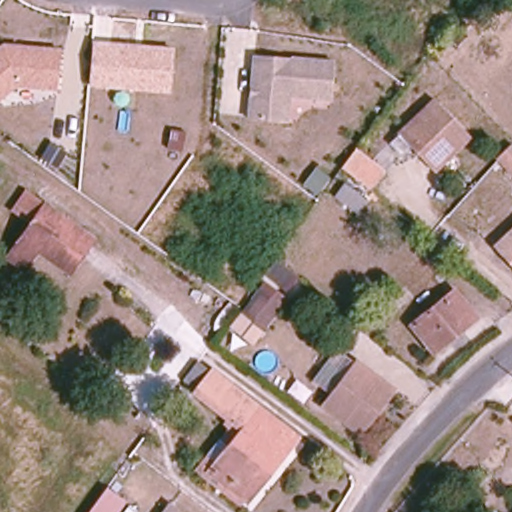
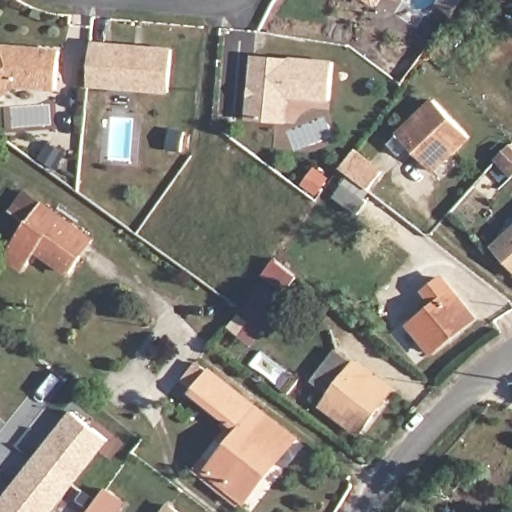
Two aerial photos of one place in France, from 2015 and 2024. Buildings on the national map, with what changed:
new [(375,7),(365,0),(380,0),(375,7)]
new [(453,16),(437,3),(439,0),(465,0),(453,16)]
unchanged [(93,42),(174,47),(170,93),(89,87),(93,42)]
unchanged [(57,91),(15,87),(0,101),(0,45),(2,43),(61,49),(57,91)]
unchanged [(277,121),(250,124),(243,60),(322,50),(327,88),(283,93),(286,120),(277,121)]
unchanged [(471,134),(432,167),(410,141),(401,149),(390,137),(399,129),(438,96),(471,134)]
unchanged [(370,189),(341,167),(356,147),(385,170),(370,189)]
unchanged [(512,156),(512,180),(500,167),(512,156)]
unchanged [(339,201),(351,187),(374,205),(364,219),(339,201)]
unchanged [(92,244),(69,277),(36,253),(24,268),(4,255),(39,207),(92,244)]
unchanged [(512,233),(512,258),(499,245),(512,233)]
unchanged [(289,296),(264,277),(278,257),(302,275),(289,296)]
unchanged [(280,297),(249,344),(226,327),(260,280),(280,297)]
unchanged [(434,351),(411,322),(452,292),(476,321),(434,351)]
unchanged [(359,437),(321,402),(359,361),(396,395),(359,437)]
unchanged [(289,432),(239,496),(204,467),(236,425),(189,389),(203,368),(289,432)]
new [(111,442),(57,512),(0,512),(76,414),(111,442)]
unchanged [(120,512),(91,512),(108,490),(126,504),(120,512)]
unchanged [(176,512),(164,512),(169,505),(176,512)]

